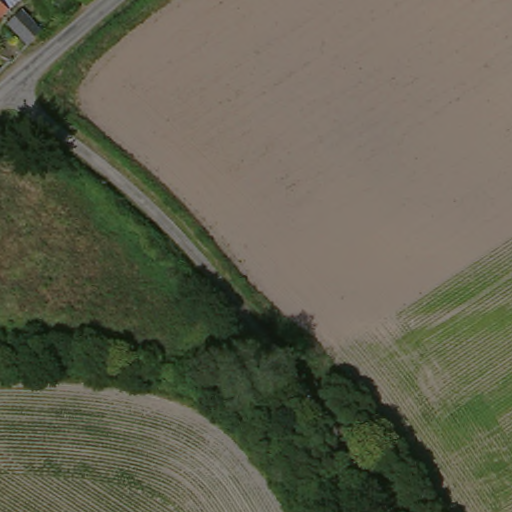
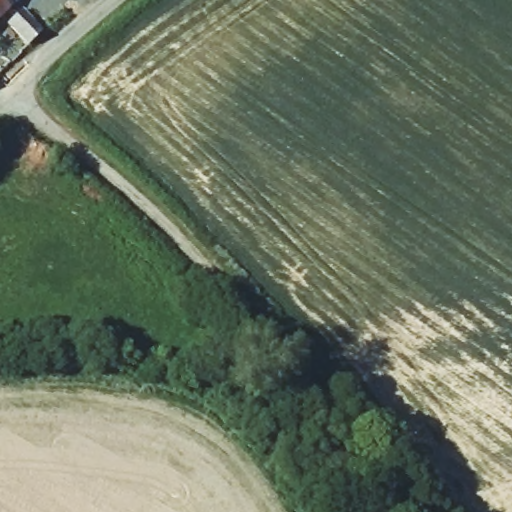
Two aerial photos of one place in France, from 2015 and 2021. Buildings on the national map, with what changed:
unchanged [(0,0),(27,0),(17,9),(0,23),(0,0)]
unchanged [(6,32),(24,16),(45,42),(28,57),(6,32)]

